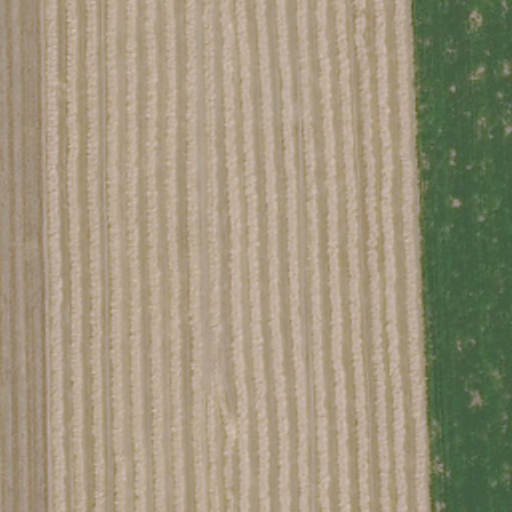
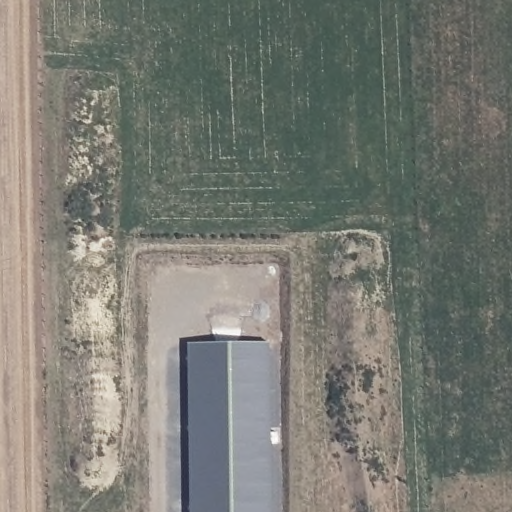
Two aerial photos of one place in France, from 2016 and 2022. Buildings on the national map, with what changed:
new [(269,343),(271,512),(190,512),(188,345),(269,343)]

